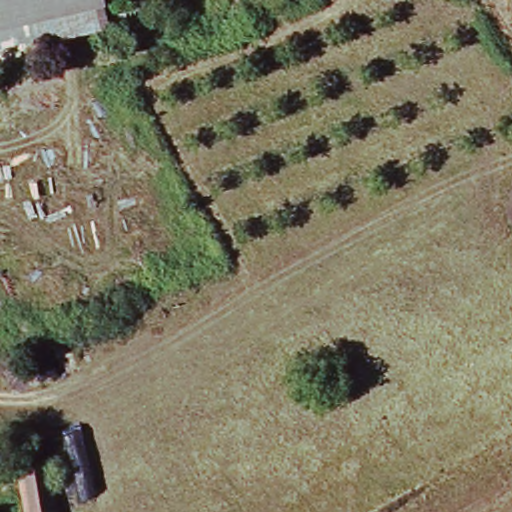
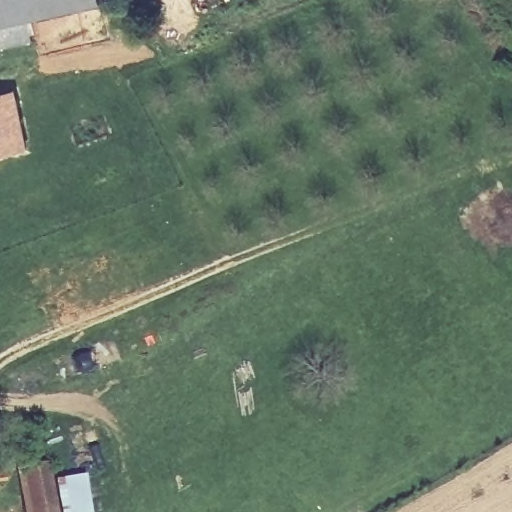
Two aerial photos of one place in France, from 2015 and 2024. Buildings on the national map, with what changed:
unchanged [(41,15),(46,38),(3,47),(0,35),(0,0),(96,0),(96,3),(41,15)]
new [(31,147),(0,155),(0,92),(17,89),(31,147)]
unchanged [(41,465),(50,512),(20,512),(13,471),(41,465)]

